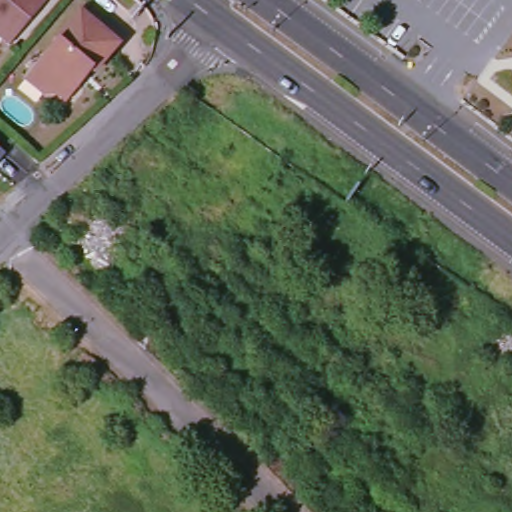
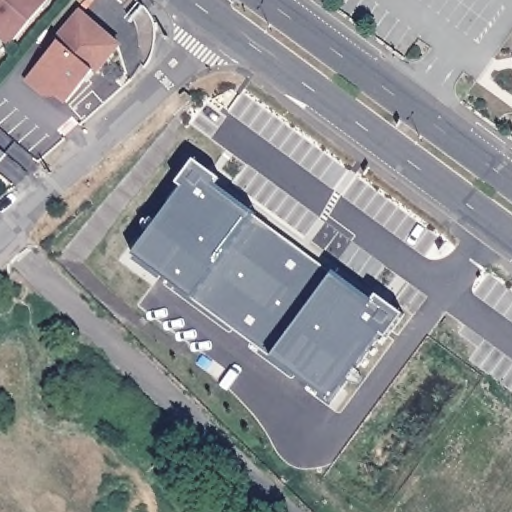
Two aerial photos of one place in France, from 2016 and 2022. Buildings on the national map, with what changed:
unchanged [(10,45),(0,36),(0,0),(48,0),(10,45)]
unchanged [(32,73),(58,42),(56,41),(80,12),(119,45),(95,73),(93,72),(67,103),(50,88),(44,96),(26,80),(32,73)]
new [(131,251),(177,186),(172,182),(189,160),(218,178),(214,186),(370,301),(375,295),(399,312),(329,399),(131,251)]
demolished [(102,214),(135,256),(103,282),(70,240),(102,214)]
demolished [(485,346),(501,325),(510,332),(512,330),(512,367),(485,346)]

